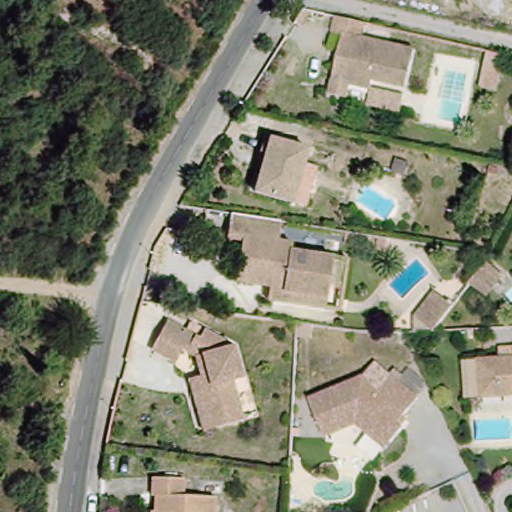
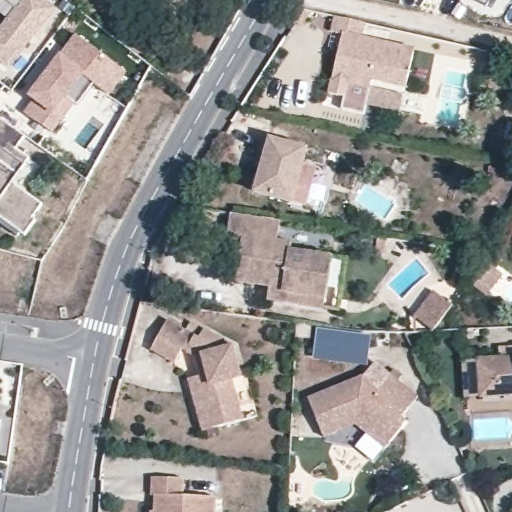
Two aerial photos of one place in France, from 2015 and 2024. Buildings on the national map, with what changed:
new [(0,4),(0,0),(3,0),(0,4)]
new [(13,66),(0,58),(0,27),(15,7),(7,0),(46,0),(56,9),(13,66)]
new [(486,7),(474,0),(490,0),(486,7)]
new [(126,69),(109,92),(93,79),(51,130),(27,110),(32,94),(61,52),(78,29),(126,69)]
unchanged [(414,52),(408,91),(373,84),(371,90),(349,86),(344,97),(329,96),(343,35),(414,52)]
new [(489,54),(503,57),(497,90),(482,87),(489,54)]
new [(16,146),(29,155),(13,179),(44,200),(31,216),(36,220),(24,235),(0,216),(0,113),(26,132),(16,146)]
unchanged [(306,204),(291,200),(254,189),(261,166),(254,163),(262,135),(306,146),(301,162),(318,166),(306,204)]
unchanged [(279,223),(276,244),(290,246),(289,255),(331,262),(324,304),(284,296),(284,290),(236,282),(241,240),(226,238),(230,214),(279,223)]
new [(436,289),(454,305),(433,327),(413,312),(436,289)]
unchanged [(186,381),(198,376),(196,363),(185,356),(174,367),(153,353),(174,318),(204,340),(213,327),(226,340),(241,347),(248,377),(238,381),(247,422),(213,430),(199,432),(186,381)]
new [(317,330),(372,336),(369,364),(314,358),(317,330)]
unchanged [(477,407),(475,390),(472,362),(512,359),(512,404),(477,407)]
unchanged [(363,431),(354,425),(321,436),(305,398),(360,374),(379,388),(393,372),(417,395),(394,420),(400,430),(391,440),(383,447),(363,431)]
unchanged [(151,492),(148,492),(148,476),(188,478),(189,497),(218,499),(218,512),(150,512),(151,508),(151,492)]

